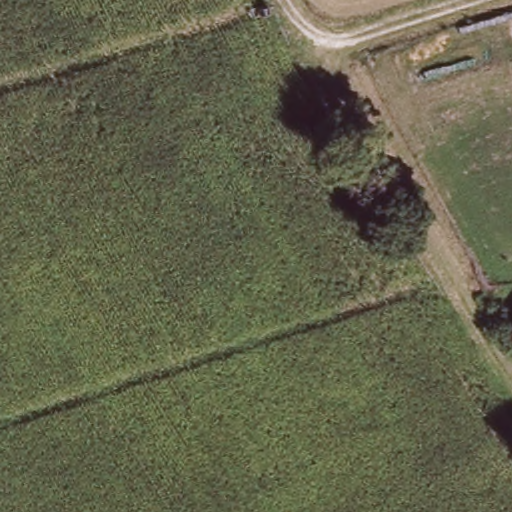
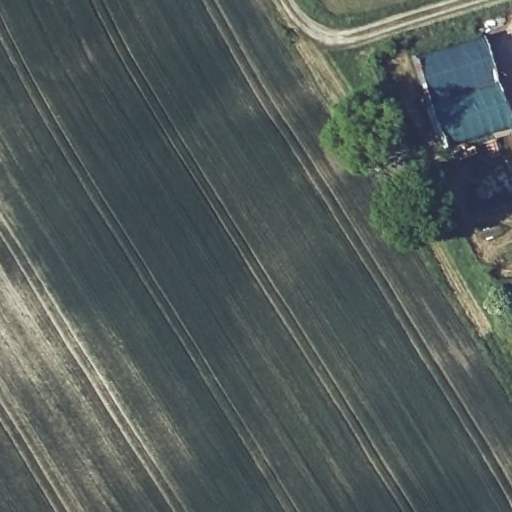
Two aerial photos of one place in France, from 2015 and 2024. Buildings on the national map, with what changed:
new [(510,127),(442,148),(413,59),(482,38),(510,127)]

